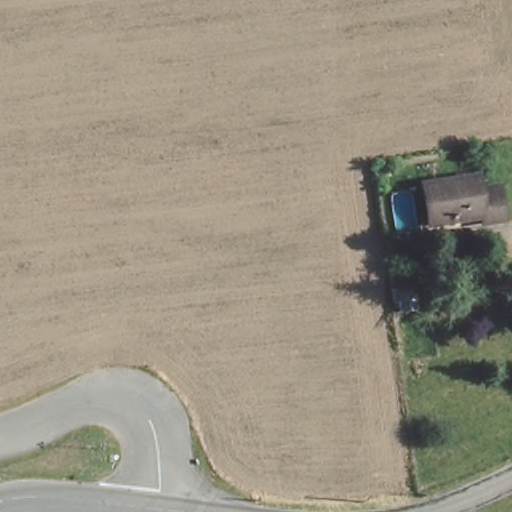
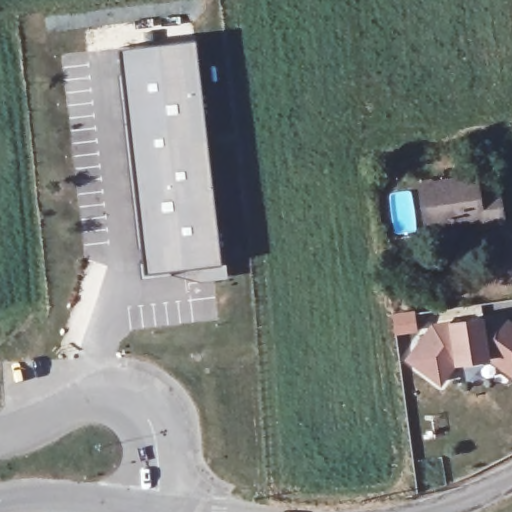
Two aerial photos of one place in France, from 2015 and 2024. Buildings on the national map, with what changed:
new [(195,41),(217,264),(145,269),(118,48),(195,41)]
unchanged [(476,181),(478,194),(500,191),(504,224),(485,226),(482,218),(431,225),(425,190),(476,181)]
new [(432,322),(449,320),(484,315),(501,312),(512,320),(512,379),(486,361),(455,365),(441,386),(405,360),(432,322)]

